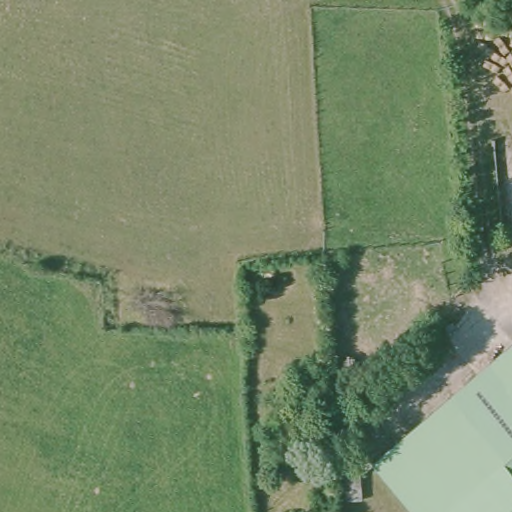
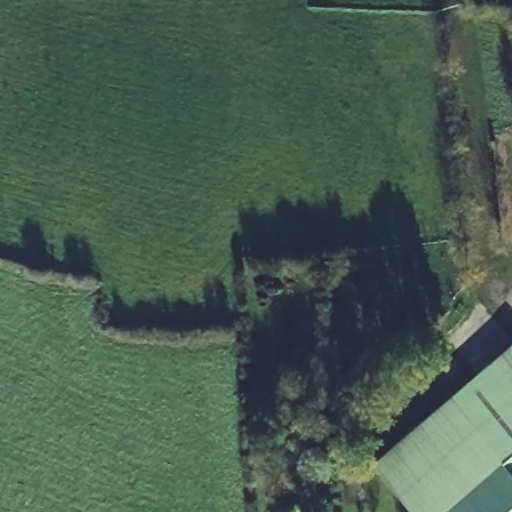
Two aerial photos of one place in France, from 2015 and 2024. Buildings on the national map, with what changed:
unchanged [(374,463),(512,344),(512,512),(418,512),(374,463)]

